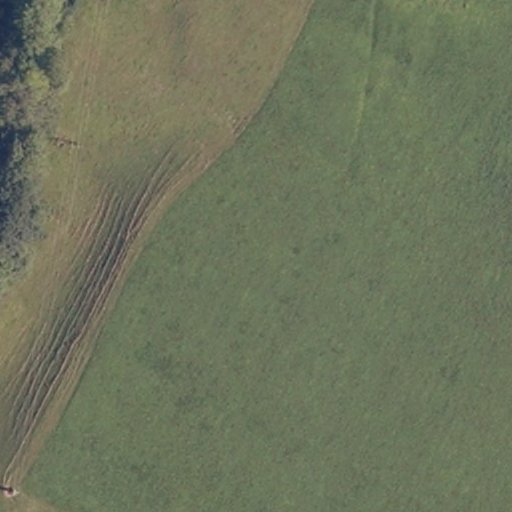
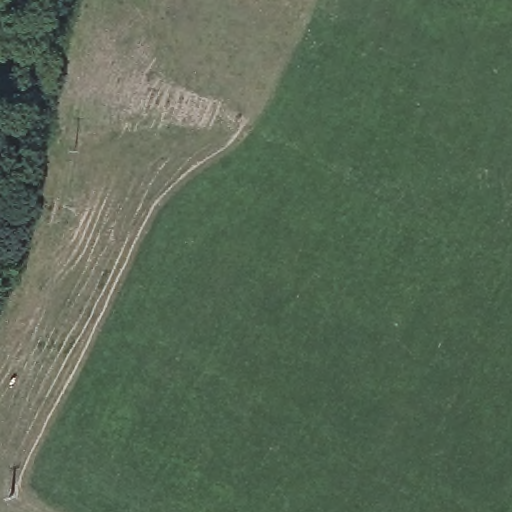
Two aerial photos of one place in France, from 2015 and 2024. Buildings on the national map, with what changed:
[]

